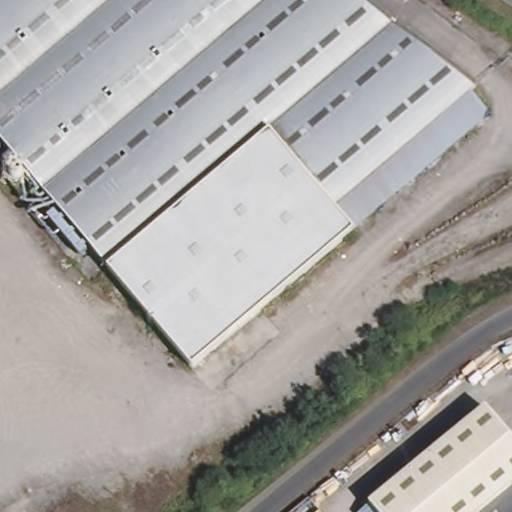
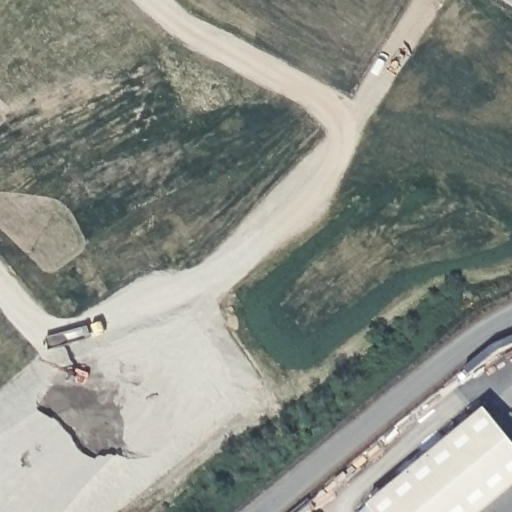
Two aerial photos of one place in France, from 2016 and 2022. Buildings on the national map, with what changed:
demolished [(264,134),(152,229),(173,254),(127,292),(0,142),(0,0),(360,0),(476,85),(470,90),(329,207),(267,132),(264,134)]
demolished [(173,254),(152,229),(264,134),(329,207),(351,232),(192,364),(127,292),(173,254)]
unchanged [(369,505),(475,417),(470,411),(479,402),(512,440),(512,512),(374,512),(369,505)]

